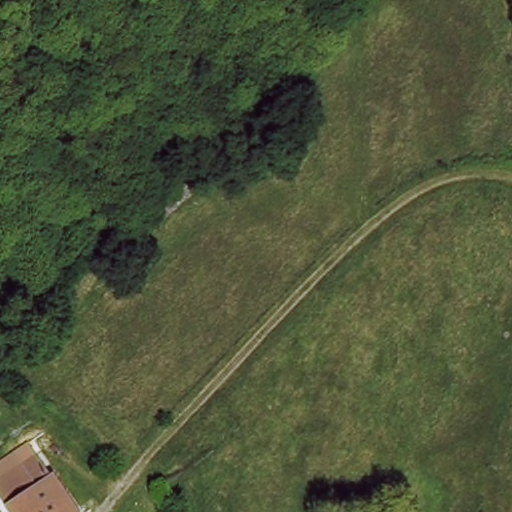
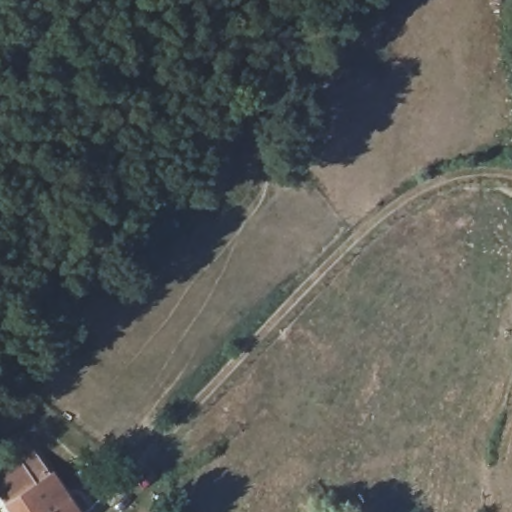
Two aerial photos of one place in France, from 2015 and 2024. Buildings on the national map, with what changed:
unchanged [(0,498),(0,470),(32,454),(43,481),(66,470),(75,493),(80,506),(82,512),(6,512),(0,498)]

